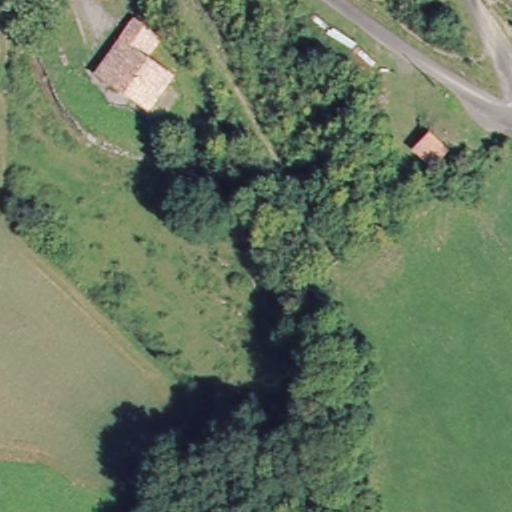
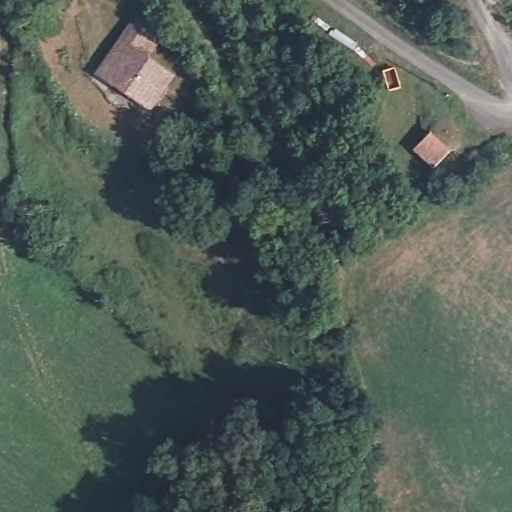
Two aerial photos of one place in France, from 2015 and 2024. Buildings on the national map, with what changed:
unchanged [(171,79),(148,112),(97,76),(135,20),(159,37),(143,59),(171,79)]

